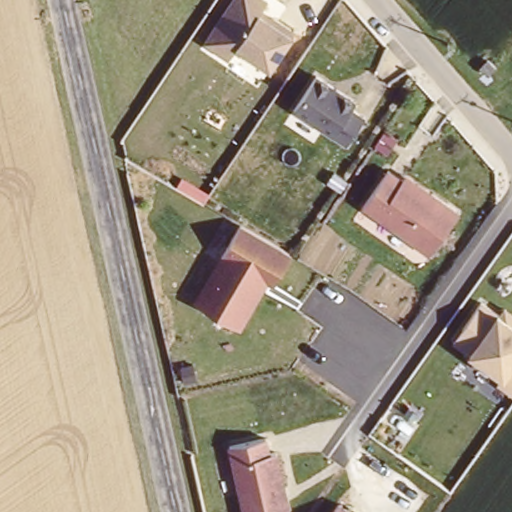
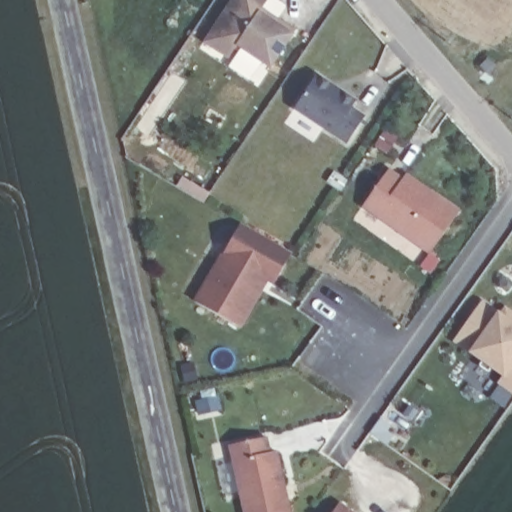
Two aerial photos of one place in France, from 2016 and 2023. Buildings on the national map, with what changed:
unchanged [(271,71),(235,47),(228,60),(204,44),(232,0),(269,0),(260,12),(295,36),(271,71)]
unchanged [(365,116),(347,146),(333,137),(292,110),(317,75),(357,101),(354,107),(365,116)]
unchanged [(402,178),(405,174),(460,212),(430,256),(361,209),(389,169),(402,178)]
unchanged [(241,329),(193,302),(242,220),(295,251),(274,286),(267,282),(241,329)]
unchanged [(512,323),(512,395),(497,385),(502,377),(468,353),(452,343),(481,302),(497,312),(512,323)]
unchanged [(231,461),(227,445),(268,437),(271,453),(278,451),(291,512),(242,512),(231,461)]
unchanged [(340,502),(353,512),(333,512),(340,502)]

